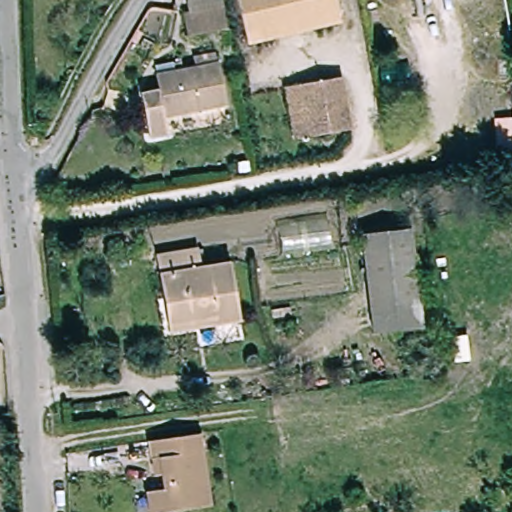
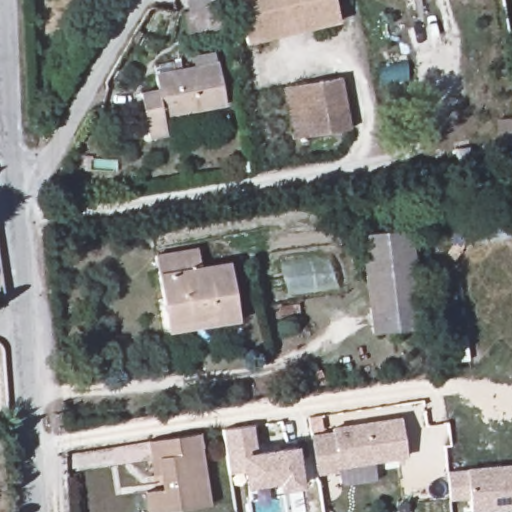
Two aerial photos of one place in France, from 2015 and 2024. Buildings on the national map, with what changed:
unchanged [(186,27),(184,4),(216,0),(226,0),(228,22),(186,27)]
unchanged [(341,19),(254,39),(245,0),(337,0),(341,19)]
unchanged [(155,142),(146,99),(163,95),(159,77),(223,66),(232,108),(168,120),(173,139),(155,142)]
unchanged [(350,129),(298,139),(289,92),(341,82),(350,129)]
unchanged [(407,234),(420,331),(368,337),(356,240),(407,234)]
unchanged [(162,305),(157,277),(153,260),(193,252),(197,270),(198,275),(226,270),(235,323),(214,327),(167,334),(166,326),(162,305)]
new [(335,431),(334,427),(403,416),(409,454),(339,465),(340,468),(319,472),(313,434),(335,431)]
new [(253,425),(257,451),(298,444),(304,487),(279,491),(278,482),(246,487),(244,471),(229,473),(223,428),(253,425)]
unchanged [(172,493),(168,462),(158,463),(154,442),(205,435),(214,507),(173,512),(152,512),(150,497),(159,496),(172,493)]
new [(512,506),(474,511),(473,497),(453,499),(450,472),(512,464),(512,506)]

